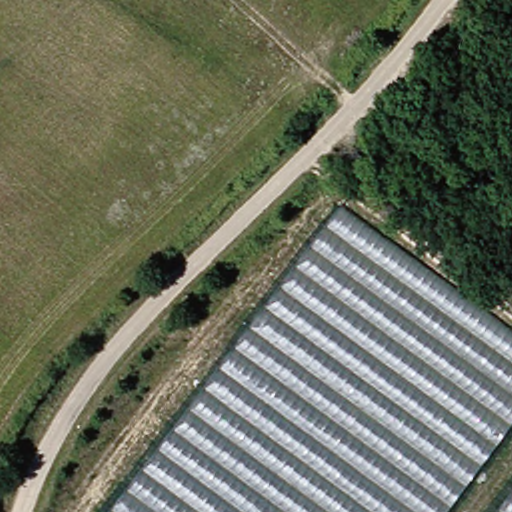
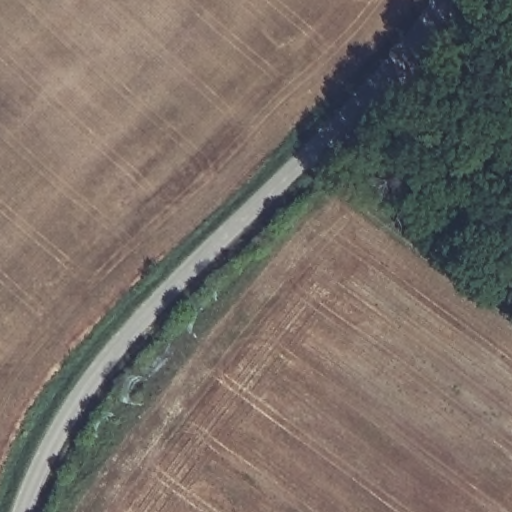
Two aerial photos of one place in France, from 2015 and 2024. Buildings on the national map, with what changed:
demolished [(329,208),(512,341),(512,406),(432,512),(98,512),(329,208)]
demolished [(512,480),(512,512),(488,512),(512,480)]

